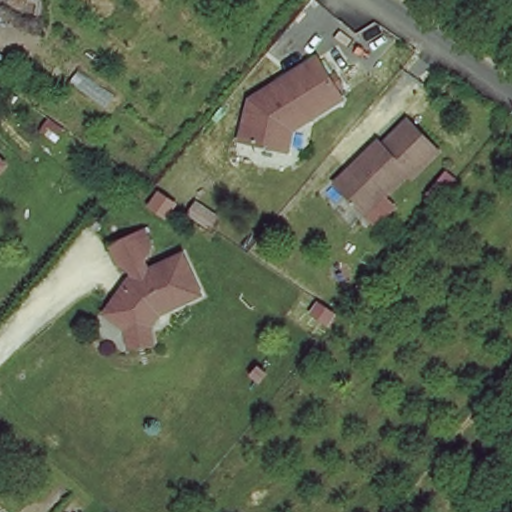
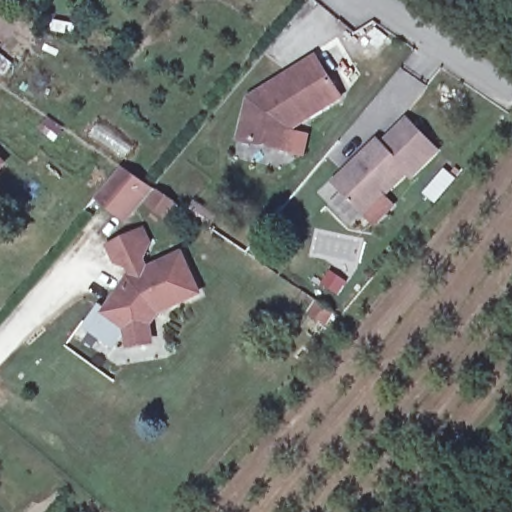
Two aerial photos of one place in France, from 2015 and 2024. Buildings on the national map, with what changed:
unchanged [(244,122),(262,111),(260,106),(292,87),(289,82),(315,66),(340,105),(290,137),(284,158),(237,147),(244,122)]
unchanged [(383,145),(386,149),(412,125),(442,156),(416,180),(412,177),(369,217),(339,186),(383,145)]
unchanged [(0,173),(0,160),(6,167),(0,173)]
new [(121,167),(152,190),(125,225),(94,200),(121,167)]
unchanged [(128,346),(126,329),(113,350),(83,328),(99,305),(107,310),(126,285),(130,288),(135,281),(130,270),(117,266),(110,249),(139,235),(147,252),(142,265),(146,272),(181,257),(200,295),(157,313),(148,326),(151,343),(128,346)]

